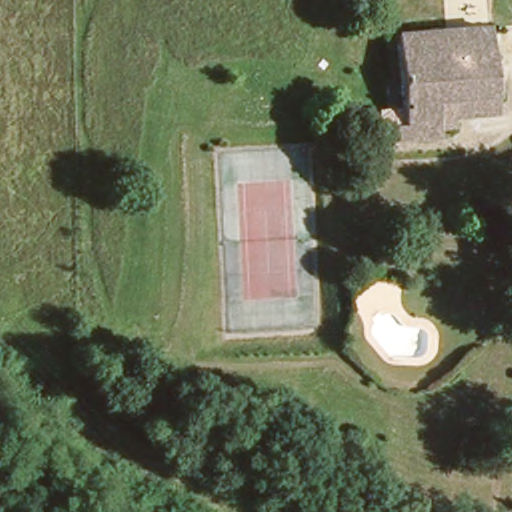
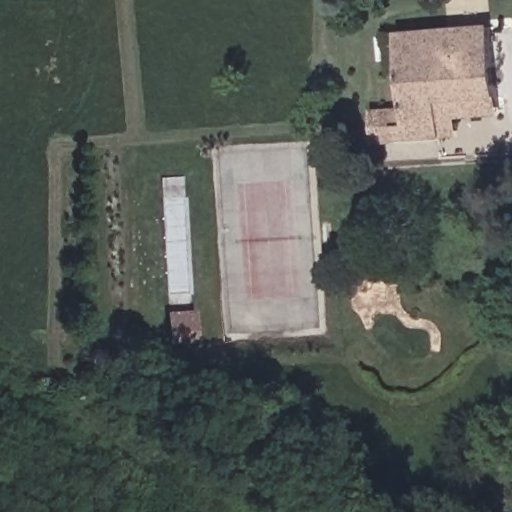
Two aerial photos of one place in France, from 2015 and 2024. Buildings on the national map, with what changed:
unchanged [(438,110),(439,136),(390,136),(390,120),(405,120),(401,28),(492,24),(492,93),(459,93),(459,110),(438,110)]

